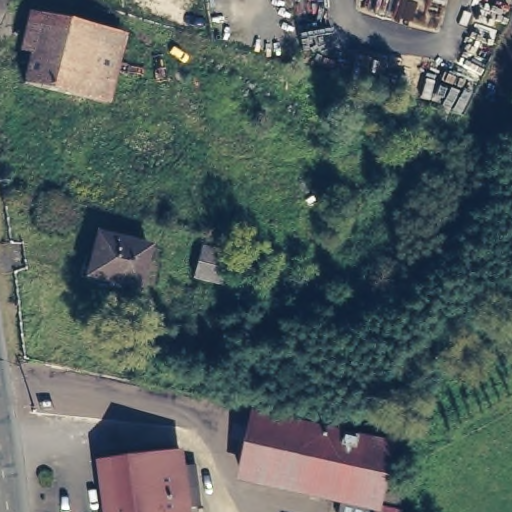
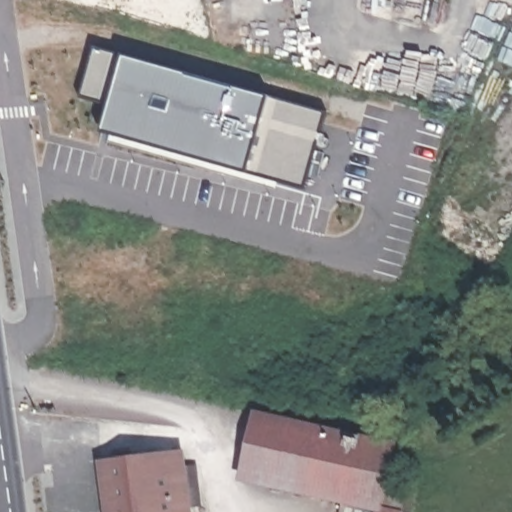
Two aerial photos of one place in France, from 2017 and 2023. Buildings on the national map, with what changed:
demolished [(29,82),(46,14),(127,35),(110,103),(29,82)]
new [(305,190),(247,173),(101,132),(110,106),(80,97),(95,49),(125,56),(269,97),(326,114),(305,190)]
demolished [(147,247),(137,287),(87,276),(97,235),(147,247)]
demolished [(202,249),(229,255),(221,285),(195,277),(202,249)]
unchanged [(401,440),(400,447),(388,480),(405,486),(405,512),(370,512),(236,482),(253,413),(401,440)]
unchanged [(185,508),(185,512),(104,512),(98,462),(176,453),(179,469),(192,467),(195,488),(198,506),(185,508)]

